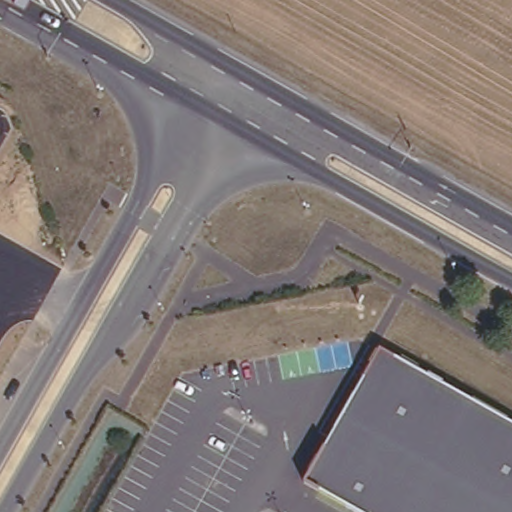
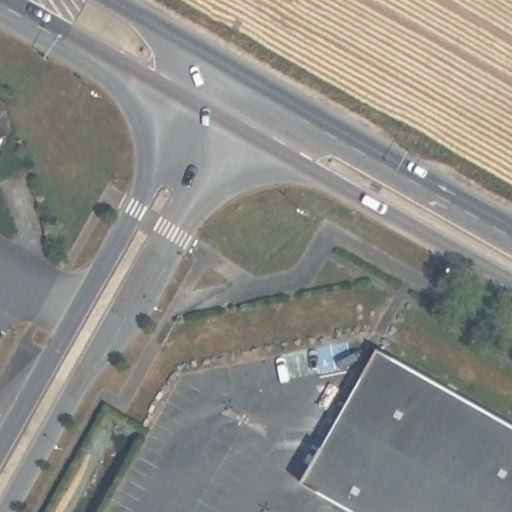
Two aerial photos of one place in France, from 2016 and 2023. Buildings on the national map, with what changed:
unchanged [(512,512),(360,512),(305,481),(378,351),(512,428),(512,512)]

